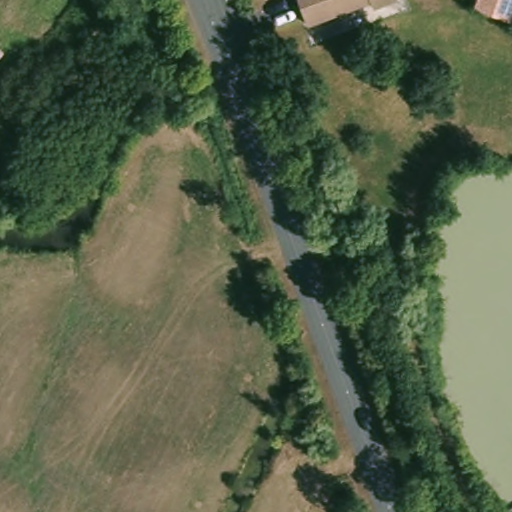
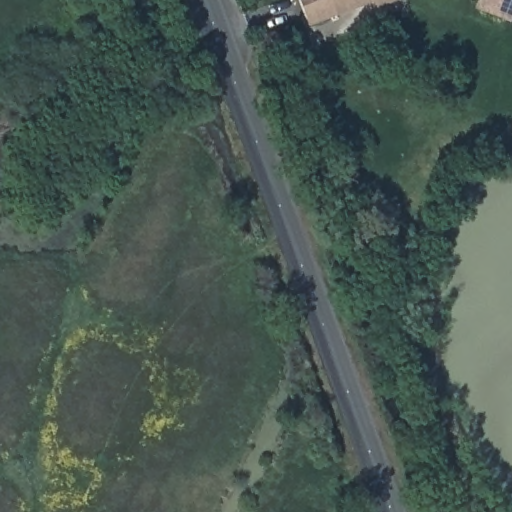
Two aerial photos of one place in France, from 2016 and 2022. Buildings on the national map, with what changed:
unchanged [(370,2),(305,28),(294,0),(402,0),(374,10),(370,2)]
unchanged [(509,21),(475,5),(478,0),(512,0),(512,19),(510,19),(509,21)]

